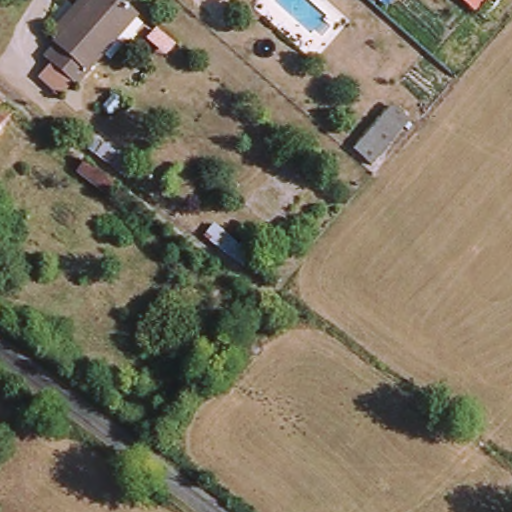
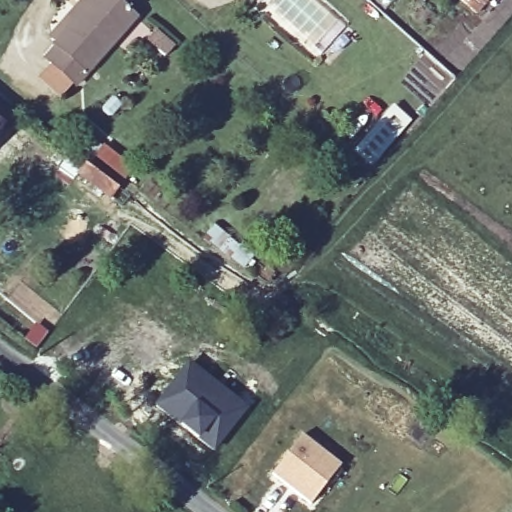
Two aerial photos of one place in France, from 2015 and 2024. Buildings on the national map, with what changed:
unchanged [(53,74),(60,65),(51,56),(75,30),(67,23),(89,0),(107,0),(137,28),(78,95),(53,74)]
unchanged [(464,0),(492,0),(481,13),(464,0)]
unchanged [(0,136),(0,100),(20,115),(0,136)]
unchanged [(407,125),(377,162),(362,150),(392,114),(407,125)]
new [(190,358),(252,406),(216,451),(190,433),(155,404),(190,358)]
new [(273,473),(303,435),(341,465),(311,502),(273,473)]

